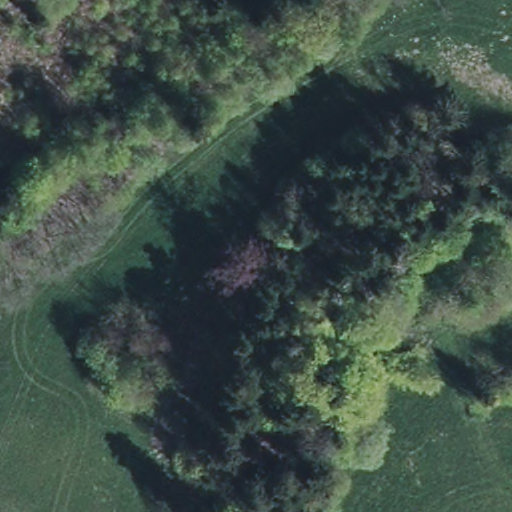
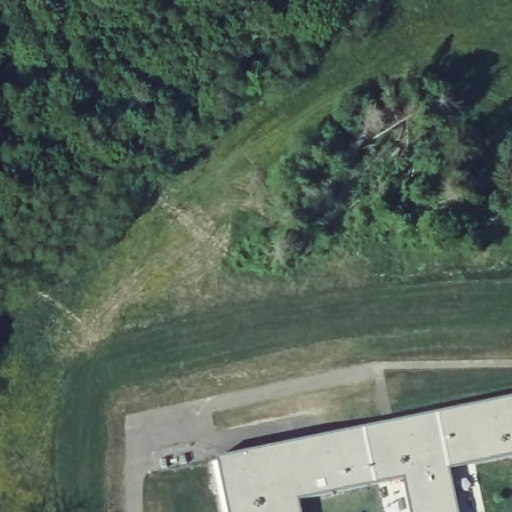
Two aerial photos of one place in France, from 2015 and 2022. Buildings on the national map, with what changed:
demolished [(476,261),(492,256),(500,283),(456,295),(450,268),(476,261)]
new [(453,479),(407,489),(404,477),(300,499),(302,512),(224,512),(214,460),(512,397),(512,454),(450,467),(453,479)]

